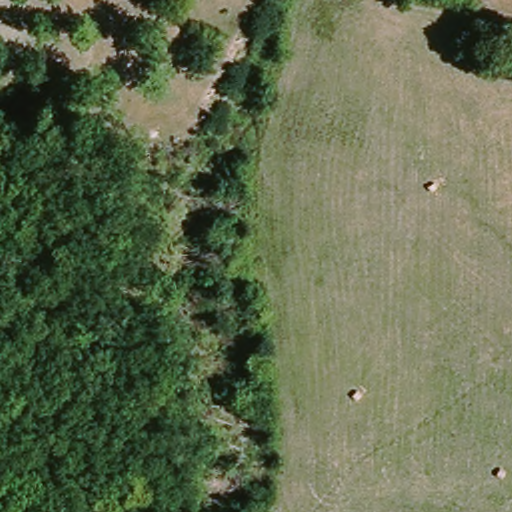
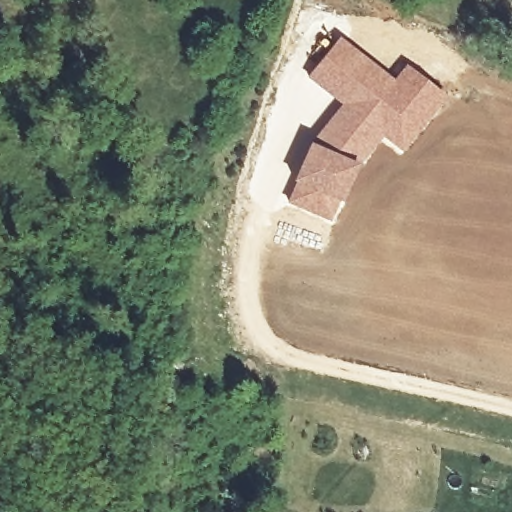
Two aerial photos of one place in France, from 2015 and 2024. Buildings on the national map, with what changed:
new [(295,182),(311,142),(341,104),(308,75),(340,36),(393,77),(406,63),(448,97),(401,152),(382,139),(360,167),(330,222),(287,201),(295,182)]

